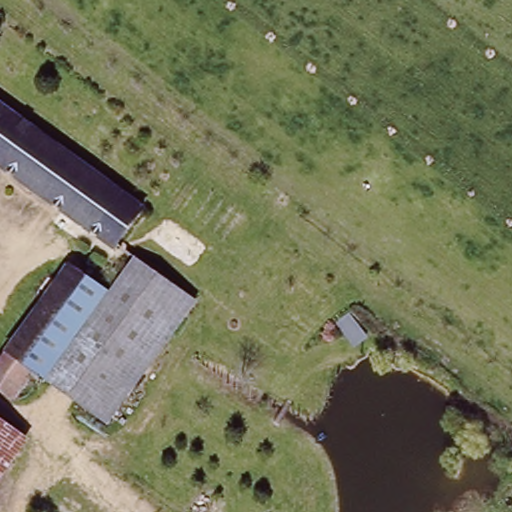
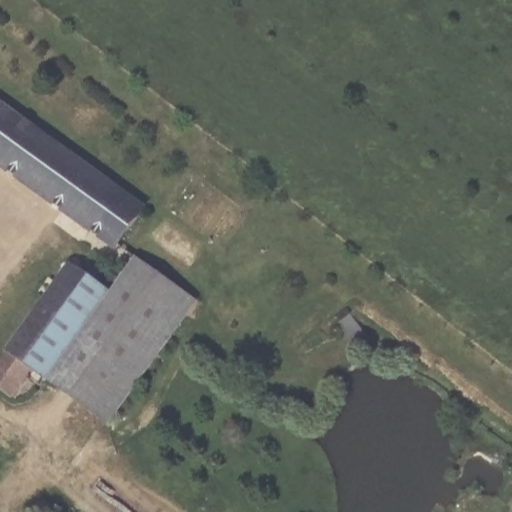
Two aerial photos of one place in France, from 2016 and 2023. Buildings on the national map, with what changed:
unchanged [(147,201),(120,239),(0,154),(0,95),(147,201)]
unchanged [(77,262),(60,249),(75,230),(130,270),(115,290),(111,287),(49,373),(37,366),(18,395),(0,382),(0,370),(77,262)]
unchanged [(130,270),(142,256),(198,298),(111,418),(49,373),(111,287),(115,290),(130,270)]
demolished [(30,437),(0,481),(0,417),(30,437)]

